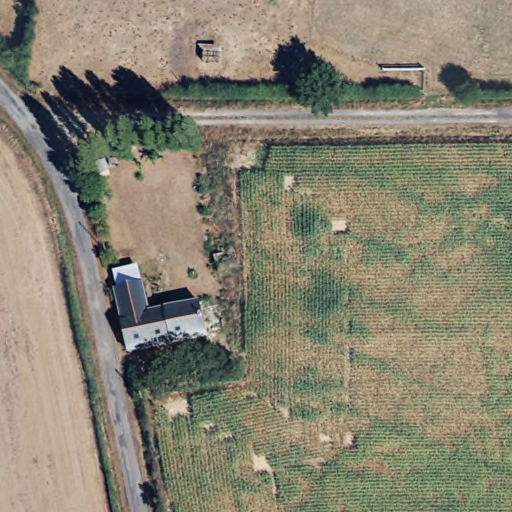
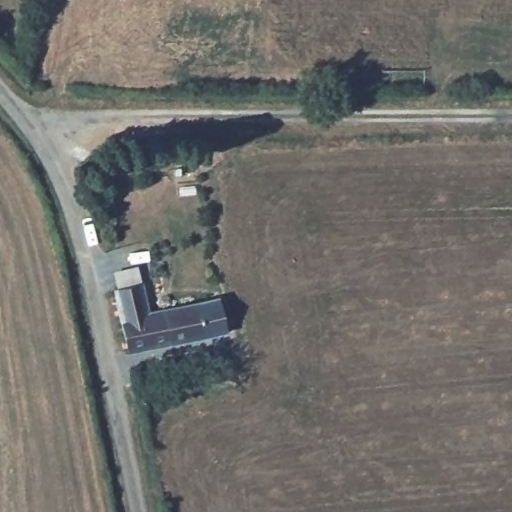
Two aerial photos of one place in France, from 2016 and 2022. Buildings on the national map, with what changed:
unchanged [(119,323),(111,288),(136,280),(144,316),(160,312),(168,348),(142,354),(126,357),(119,323)]
unchanged [(160,309),(195,301),(204,340),(168,348),(160,312),(160,309)]

